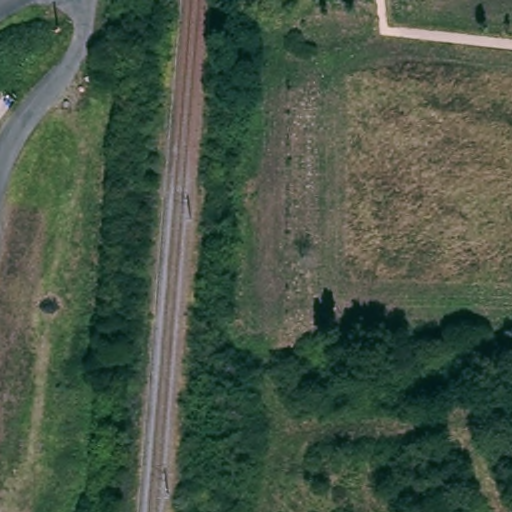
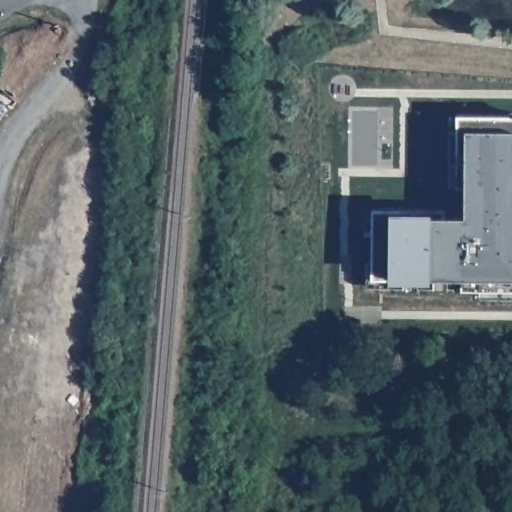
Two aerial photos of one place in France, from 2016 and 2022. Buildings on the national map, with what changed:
new [(512,291),(466,290),(367,288),(367,262),(374,263),(373,212),(394,215),(434,215),(434,220),(468,220),(468,189),(458,188),(450,187),(450,116),(460,117),(512,117),(512,291)]

